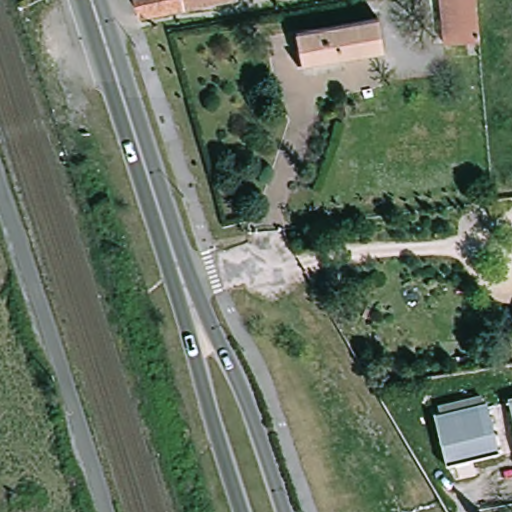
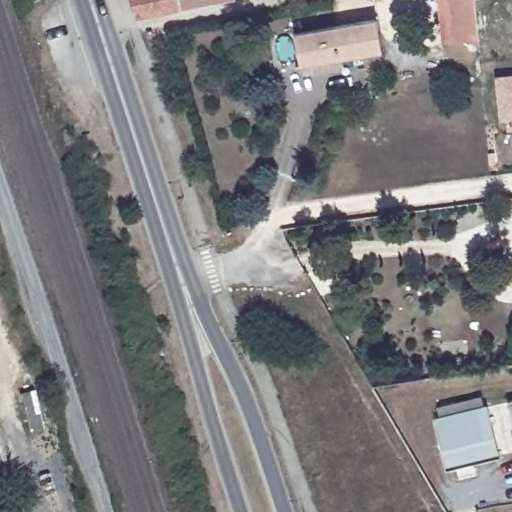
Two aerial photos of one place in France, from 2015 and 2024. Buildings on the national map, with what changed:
unchanged [(143,15),(138,0),(225,0),(143,15)]
unchanged [(478,41),(443,44),(439,0),(474,0),(478,41)]
unchanged [(380,35),(383,52),(301,66),(298,50),(295,33),(377,19),(380,35)]
new [(496,76),(512,75),(512,119),(502,120),(496,76)]
unchanged [(512,401),(512,421),(508,402),(512,401)]
unchanged [(505,461),(452,474),(441,424),(445,423),(443,412),(486,402),(488,413),(493,412),(505,461)]

